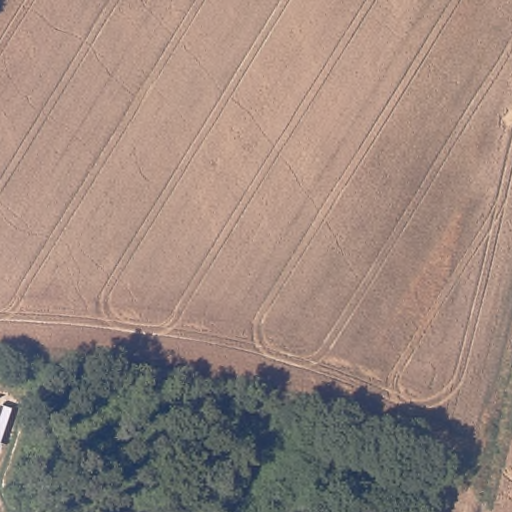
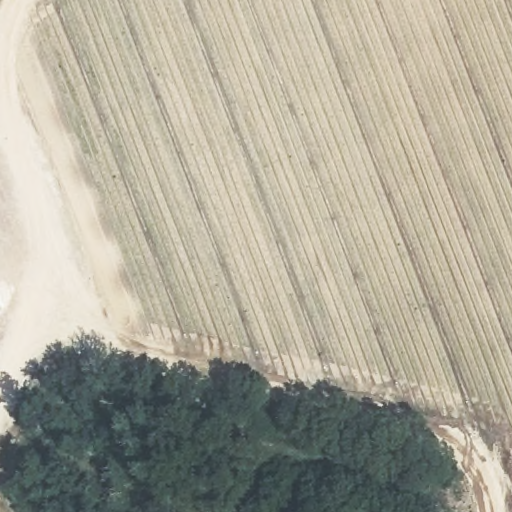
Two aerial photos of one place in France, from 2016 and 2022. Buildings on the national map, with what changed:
[]

